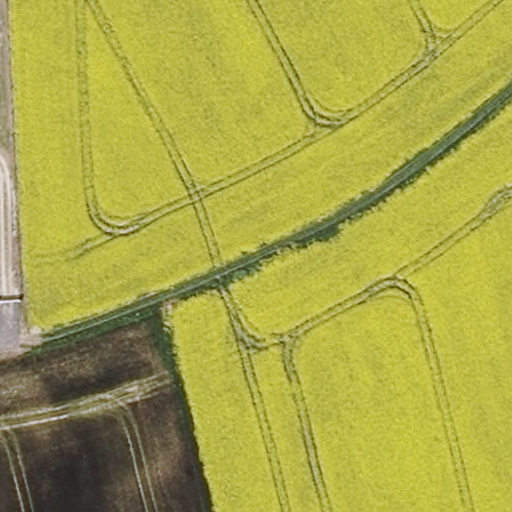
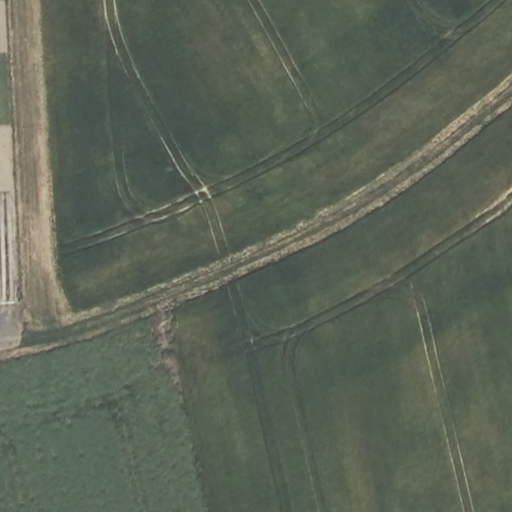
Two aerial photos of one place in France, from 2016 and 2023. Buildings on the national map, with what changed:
[]

